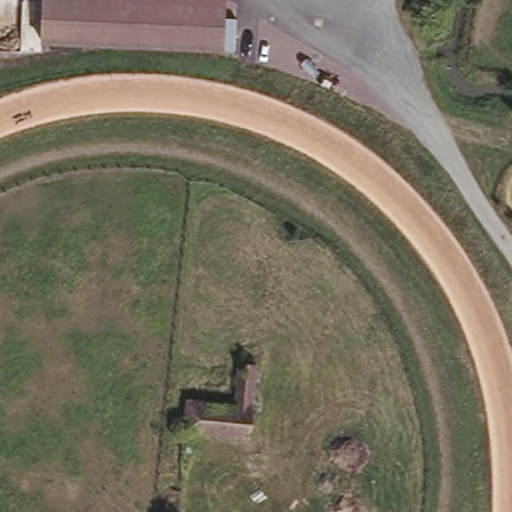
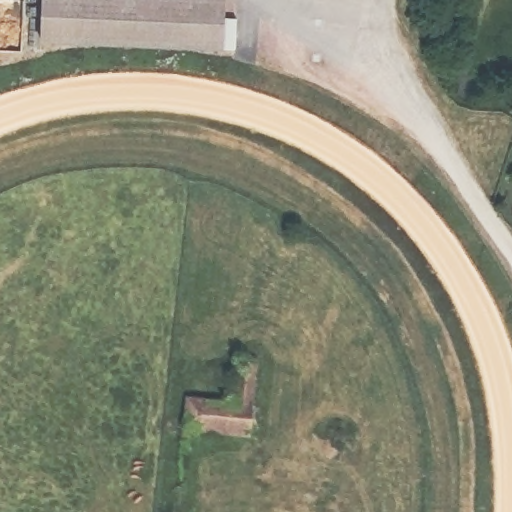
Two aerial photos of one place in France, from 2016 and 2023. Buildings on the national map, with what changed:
unchanged [(229,48),(41,40),(45,0),(231,0),(229,48)]
unchanged [(239,402),(245,363),(264,366),(253,436),(187,429),(193,397),(239,402)]

